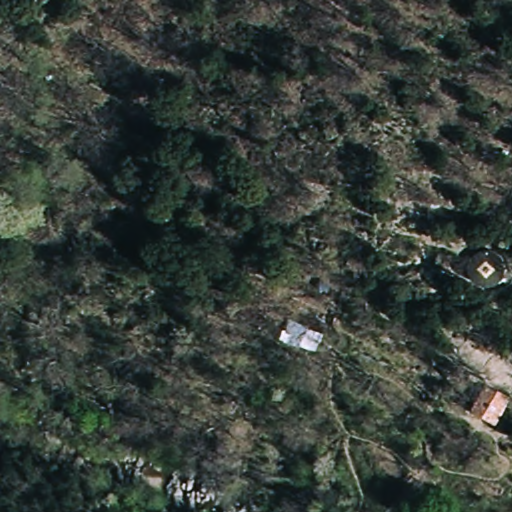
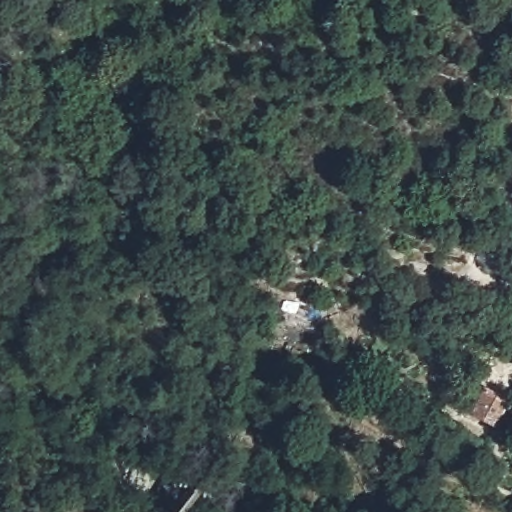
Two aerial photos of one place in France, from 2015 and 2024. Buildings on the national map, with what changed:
unchanged [(512,398),(509,422),(484,419),(487,386),(512,390),(512,398)]

